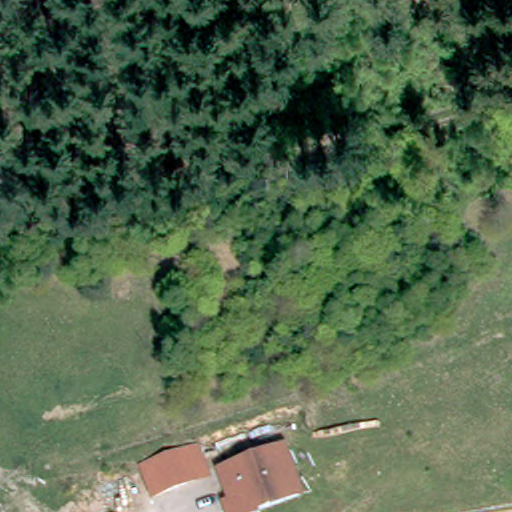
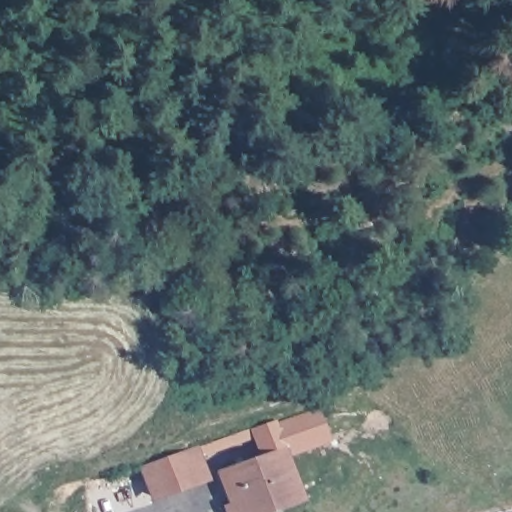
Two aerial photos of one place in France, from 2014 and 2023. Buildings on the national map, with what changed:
new [(284,448),(260,457),(251,431),(320,409),(331,443),(288,459),(284,448)]
unchanged [(212,480),(150,503),(136,469),(200,445),(212,480)]
unchanged [(306,504),(283,512),(232,512),(217,472),(284,448),(306,504)]

